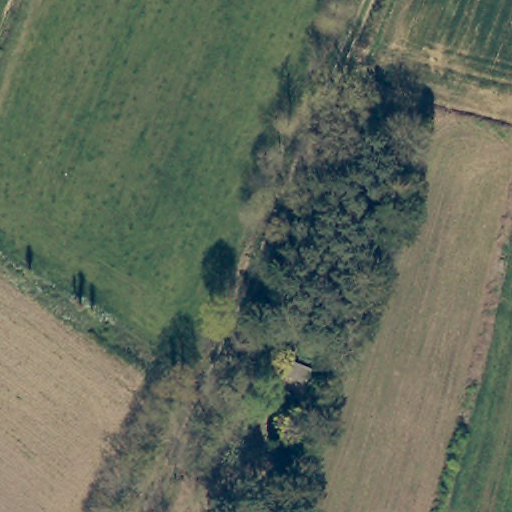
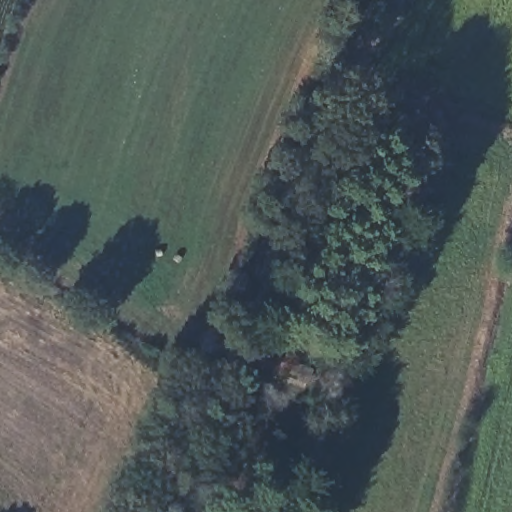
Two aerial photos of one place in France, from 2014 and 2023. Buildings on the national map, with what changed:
unchanged [(254,422),(239,416),(246,398),(262,405),(254,422)]

